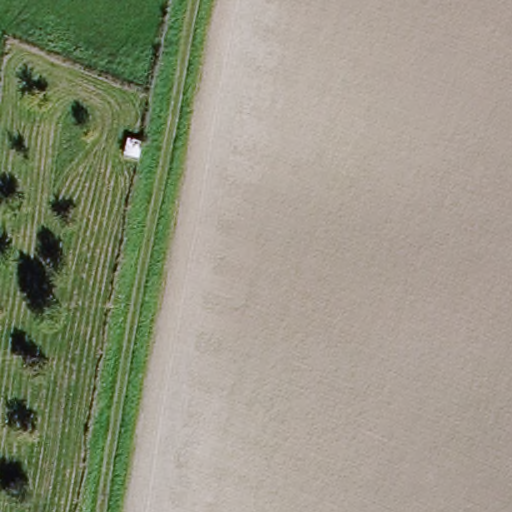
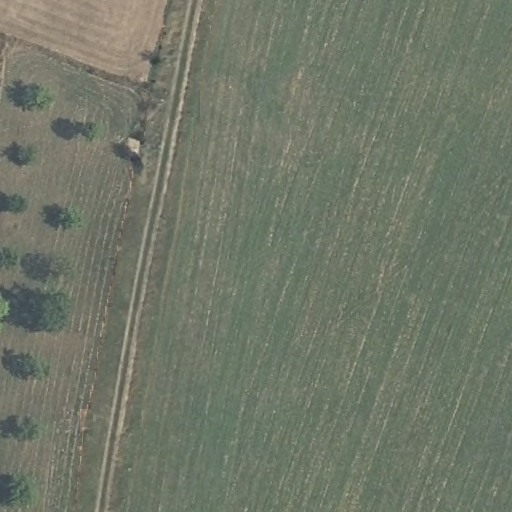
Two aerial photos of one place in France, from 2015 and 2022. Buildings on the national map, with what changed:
unchanged [(125,142),(142,147),(137,168),(125,180),(120,165),(125,142)]

